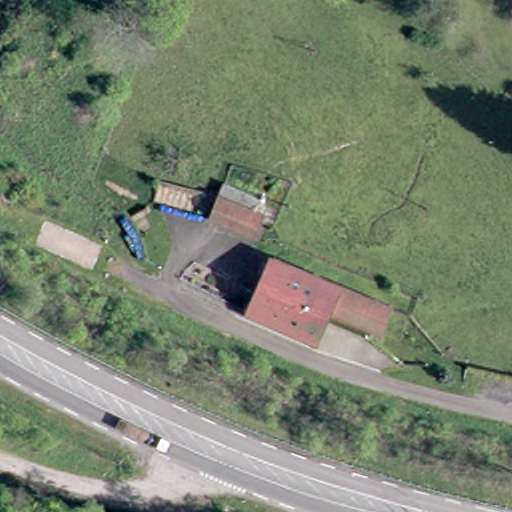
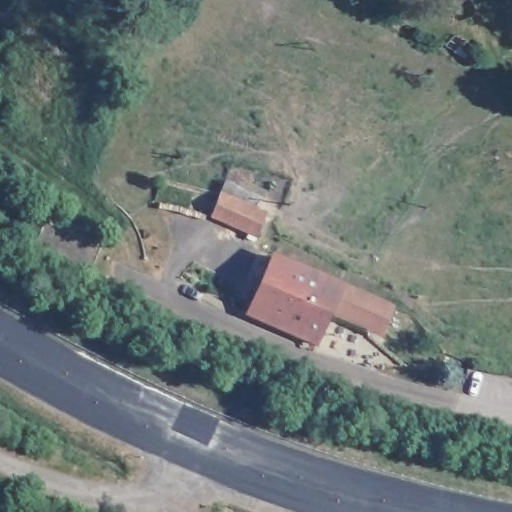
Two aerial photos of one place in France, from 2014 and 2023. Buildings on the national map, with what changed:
unchanged [(253,240),(207,219),(217,197),(220,189),(245,200),(242,209),(262,219),(253,240)]
unchanged [(326,311),(313,340),(248,311),(272,255),(387,305),(375,332),(326,311)]

